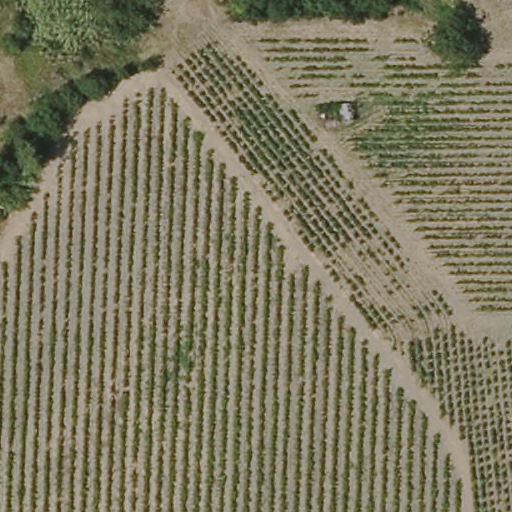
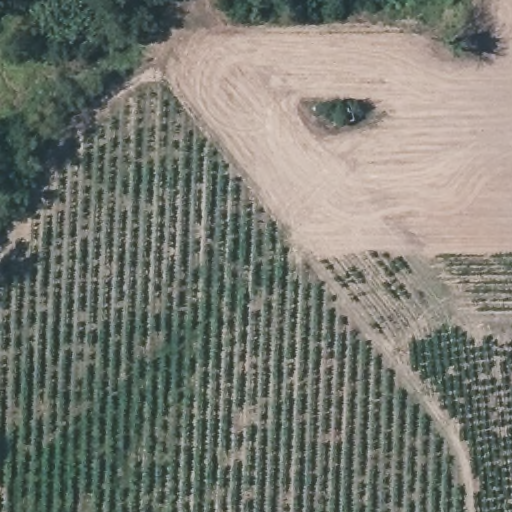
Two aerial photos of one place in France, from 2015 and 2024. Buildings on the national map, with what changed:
unchanged [(351,120),(335,121),(335,100),(350,99),(351,120)]

